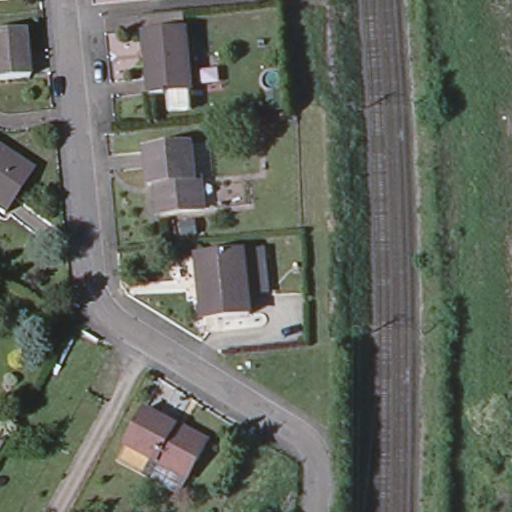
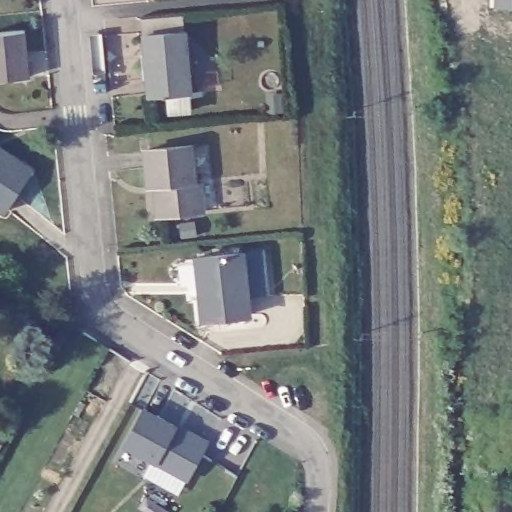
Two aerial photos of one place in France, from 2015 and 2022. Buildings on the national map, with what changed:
new [(495,10),(495,0),(512,0),(512,11),(495,10)]
unchanged [(30,75),(0,79),(0,31),(25,28),(30,75)]
unchanged [(185,30),(191,90),(152,94),(146,33),(185,30)]
unchanged [(191,145),(195,178),(202,178),(205,208),(160,213),(156,183),(150,184),(145,150),(191,145)]
unchanged [(7,149),(34,166),(6,210),(0,206),(0,147),(6,151),(7,149)]
unchanged [(244,250),(250,313),(205,318),(199,254),(244,250)]
unchanged [(135,469),(116,459),(125,443),(145,407),(164,418),(177,425),(175,427),(195,437),(207,443),(188,477),(177,471),(153,458),(144,474),(135,469)]
unchanged [(0,443),(0,427),(7,431),(0,443)]

